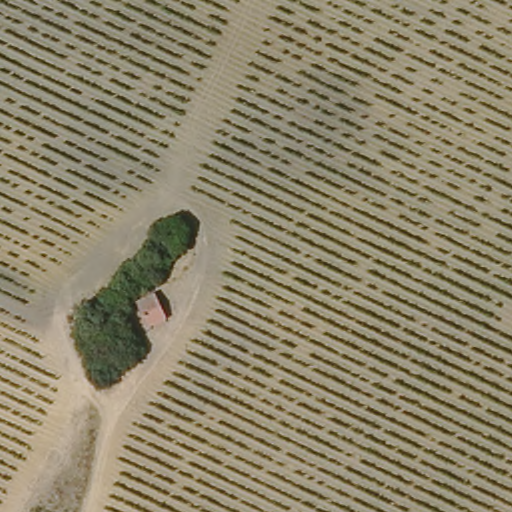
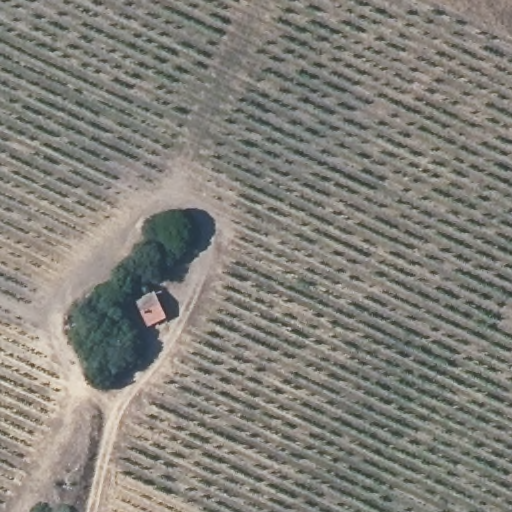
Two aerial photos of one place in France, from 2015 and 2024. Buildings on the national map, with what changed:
unchanged [(141,321),(132,295),(150,287),(160,314),(141,321)]

